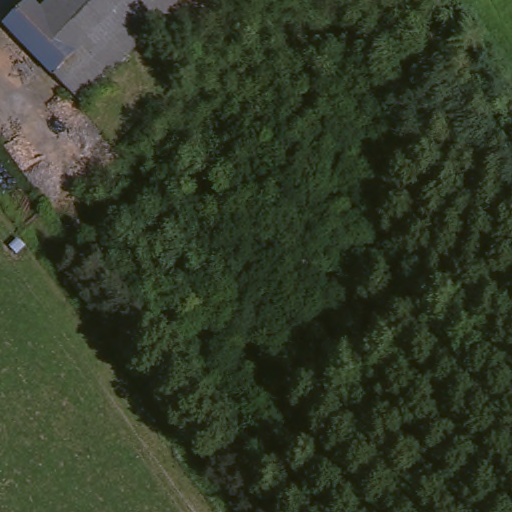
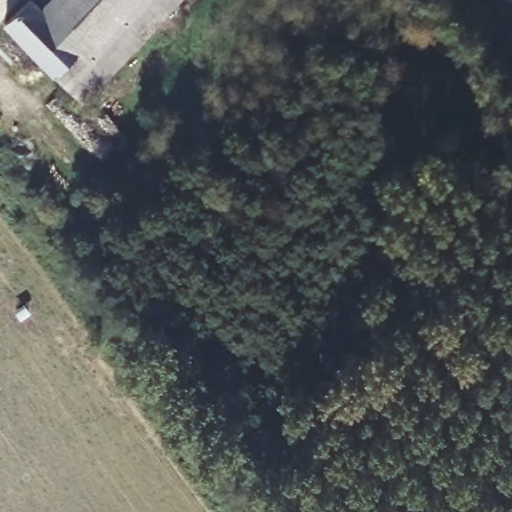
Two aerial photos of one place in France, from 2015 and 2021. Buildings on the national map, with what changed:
unchanged [(34,16),(48,0),(121,0),(86,38),(69,53),(34,16)]
unchanged [(45,76),(69,53),(86,38),(121,0),(176,0),(76,110),(45,76)]
unchanged [(69,53),(45,76),(6,35),(0,27),(0,22),(21,3),(27,10),(34,16),(69,53)]

